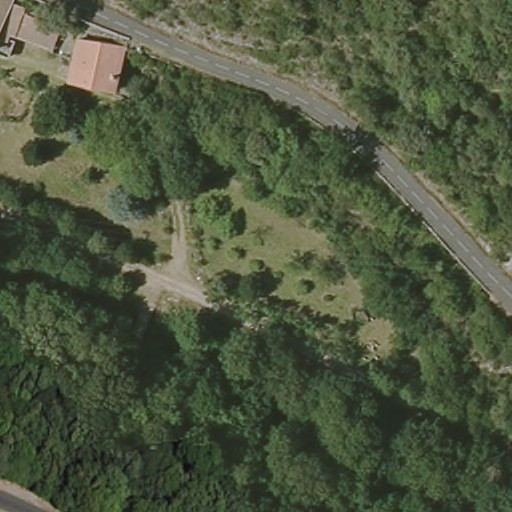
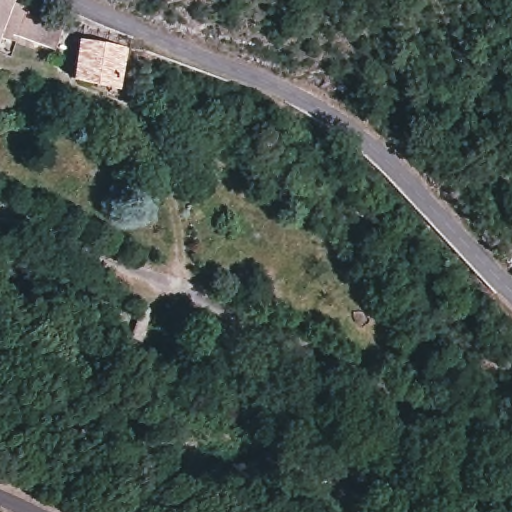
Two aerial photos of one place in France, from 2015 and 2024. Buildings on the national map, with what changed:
unchanged [(5,28),(0,45),(0,0),(20,0),(18,8),(70,29),(64,48),(5,28)]
unchanged [(128,48),(121,84),(79,76),(88,40),(128,48)]

